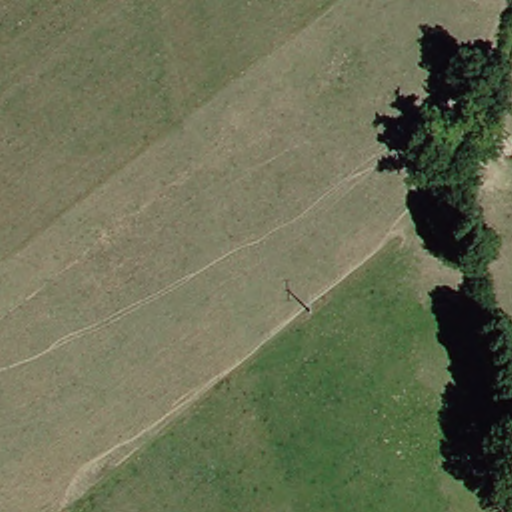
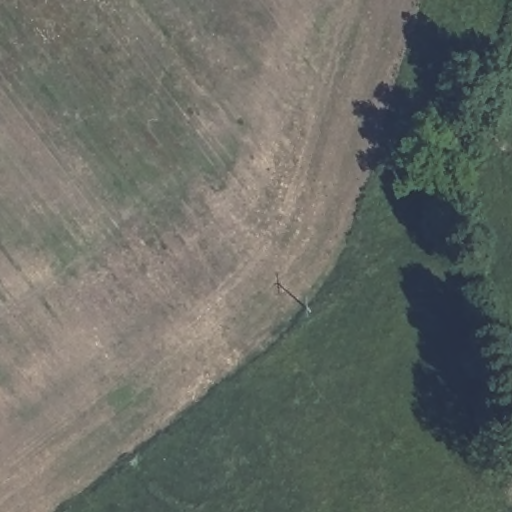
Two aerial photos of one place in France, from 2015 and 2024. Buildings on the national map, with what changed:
[]

